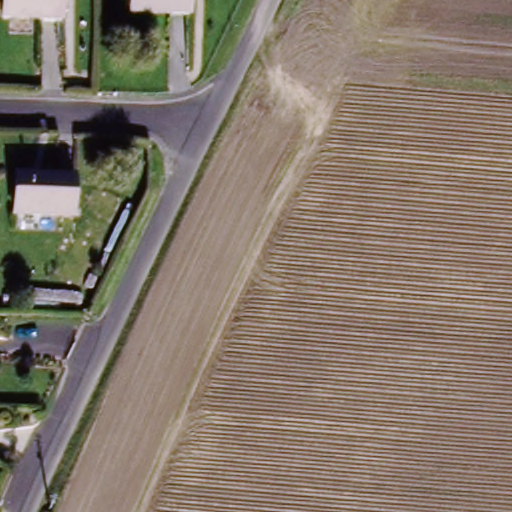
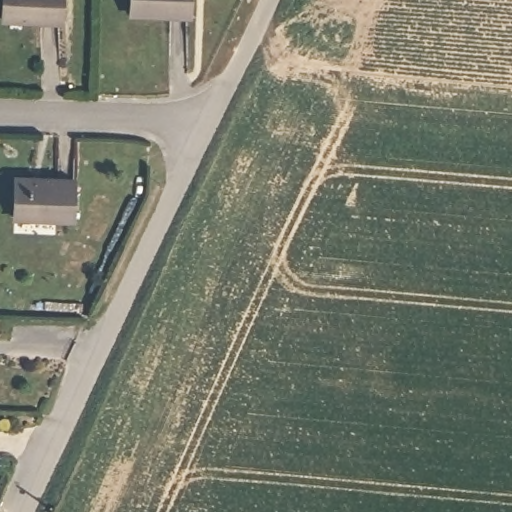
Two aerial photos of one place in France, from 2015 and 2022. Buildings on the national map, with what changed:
unchanged [(2,22),(2,0),(59,0),(58,23),(2,22)]
unchanged [(131,16),(132,0),(187,0),(186,19),(131,16)]
unchanged [(73,178),(72,216),(15,215),(15,177),(73,178)]

